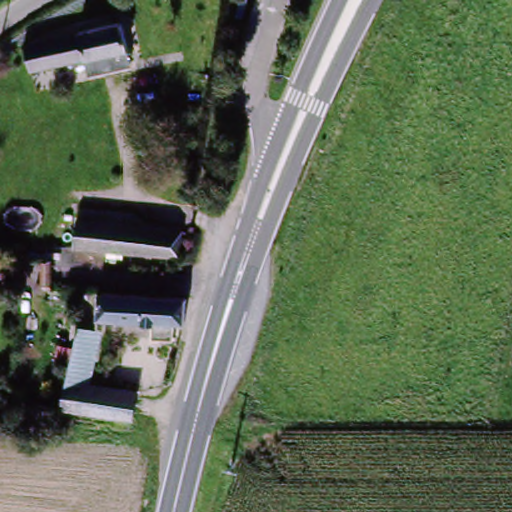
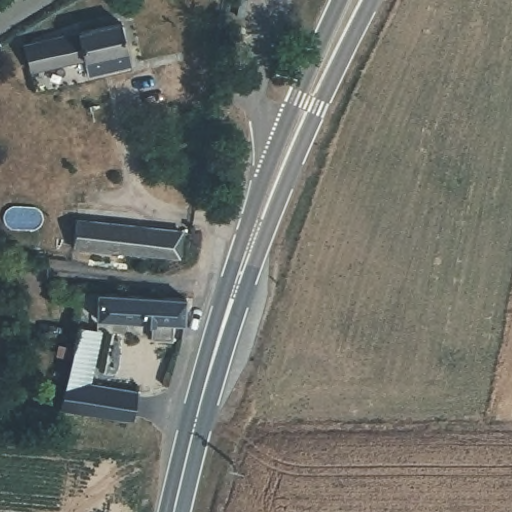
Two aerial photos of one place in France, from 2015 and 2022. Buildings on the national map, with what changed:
unchanged [(20,40),(119,20),(128,62),(86,71),(83,59),(26,70),(20,40)]
unchanged [(129,226),(183,226),(182,254),(79,255),(79,227),(129,226)]
unchanged [(189,291),(186,318),(95,317),(99,290),(189,291)]
unchanged [(151,338),(151,321),(172,321),(173,338),(151,338)]
unchanged [(70,405),(63,403),(78,328),(106,334),(98,376),(136,383),(132,405),(130,416),(70,405)]

